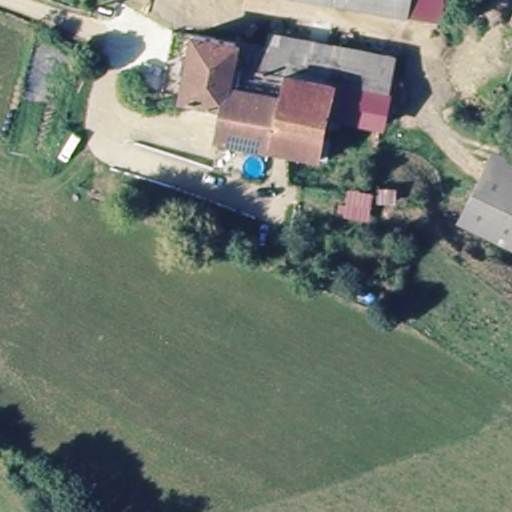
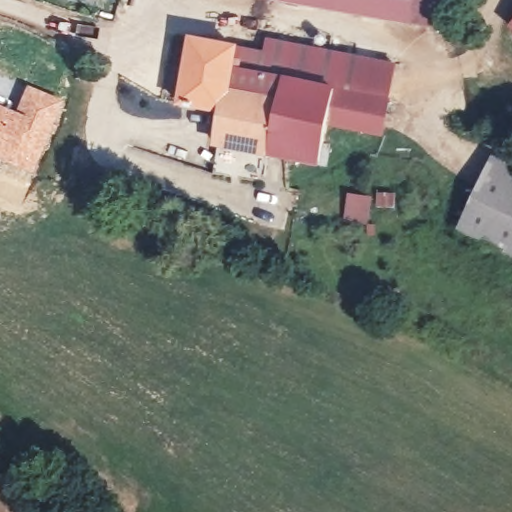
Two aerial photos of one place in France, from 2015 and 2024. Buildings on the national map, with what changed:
unchanged [(335,0),(334,12),(275,5),(236,0),(335,0)]
unchanged [(335,0),(409,0),(406,21),(396,20),(334,12),(335,0)]
unchanged [(406,21),(409,0),(444,0),(439,26),(406,21)]
new [(509,26),(512,23),(512,29),(509,26)]
unchanged [(377,134),(324,126),(323,141),(319,169),(272,161),(277,80),(258,79),(259,55),(260,39),(388,58),(377,134)]
unchanged [(178,111),(184,46),(225,51),(220,115),(178,111)]
unchanged [(258,79),(277,80),(272,161),(218,152),(220,115),(225,51),(259,55),(258,79)]
new [(25,85),(62,101),(31,172),(0,161),(0,106),(13,111),(25,85)]
unchanged [(463,233),(491,167),(512,175),(512,255),(463,233)]

